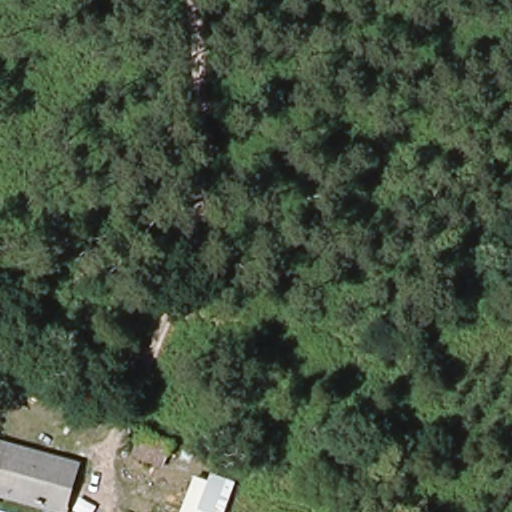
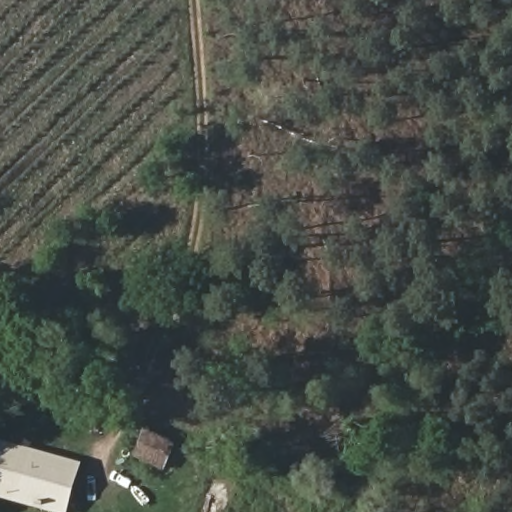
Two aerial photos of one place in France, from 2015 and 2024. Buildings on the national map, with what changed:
unchanged [(164,468),(132,459),(141,436),(172,446),(164,468)]
unchanged [(46,512),(0,500),(0,450),(79,471),(66,512),(46,512)]
new [(209,483),(213,473),(236,482),(224,512),(181,512),(194,477),(209,483)]

